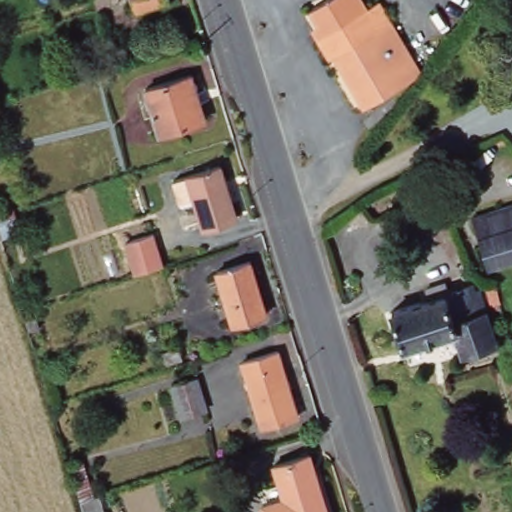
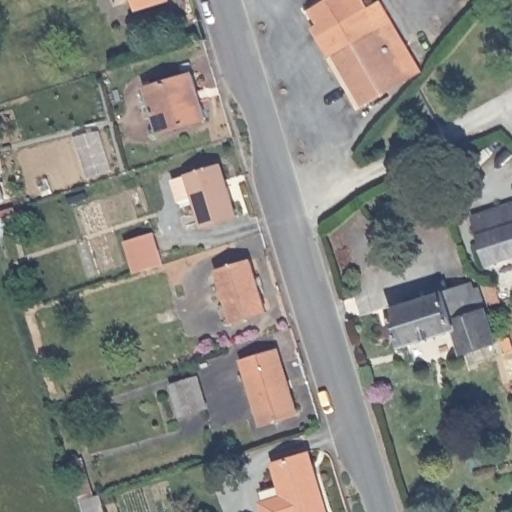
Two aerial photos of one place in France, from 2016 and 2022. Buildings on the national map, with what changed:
unchanged [(173,2),(140,11),(137,0),(173,0),(173,2)]
unchanged [(365,3),(370,0),(382,0),(420,69),(363,103),(333,50),(326,54),(314,31),(322,26),(311,7),(324,0),(364,0),(365,3)]
unchanged [(196,76),(209,120),(163,134),(148,90),(196,76)]
unchanged [(238,219),(205,229),(196,198),(182,203),(177,181),(189,177),(223,167),(238,219)]
unchanged [(395,194),(405,189),(418,183),(437,218),(424,224),(415,229),(395,194)]
unchanged [(473,215),(512,201),(512,255),(489,263),(473,215)]
unchanged [(2,237),(0,228),(0,212),(18,208),(22,222),(11,225),(14,235),(3,240),(2,237)]
unchanged [(137,275),(127,243),(155,235),(165,267),(137,275)]
unchanged [(251,264),(267,314),(234,324),(218,274),(251,264)]
unchanged [(506,297),(497,299),(493,283),(500,280),(506,297)]
unchanged [(465,353),(457,330),(407,346),(395,311),(433,298),(430,289),(450,282),(454,292),(481,283),(500,342),(465,353)]
unchanged [(280,354),(298,417),(262,427),(244,365),(280,354)]
unchanged [(182,424),(173,391),(202,381),(212,414),(182,424)]
unchanged [(270,512),(267,504),(275,501),(271,487),(286,484),(280,464),(316,452),(334,512),(270,512)]

